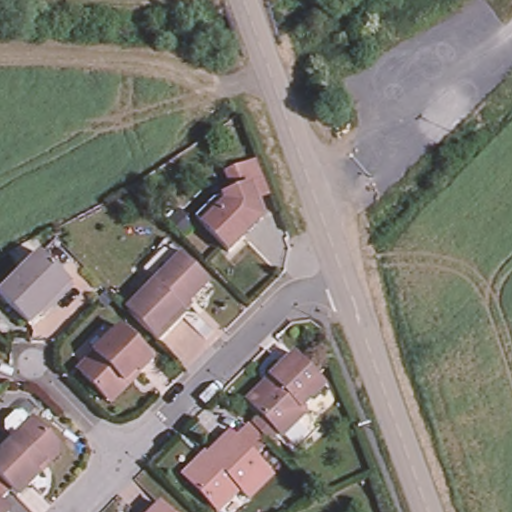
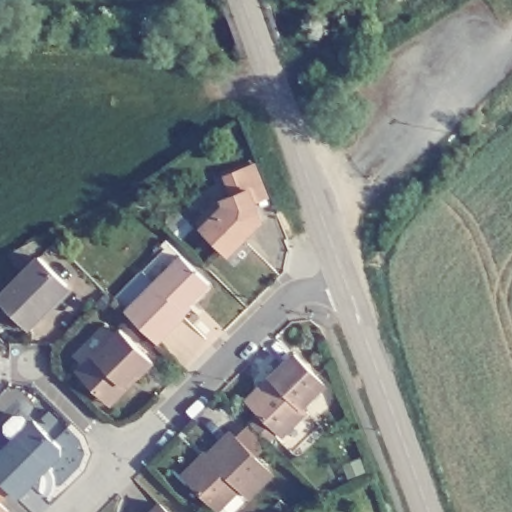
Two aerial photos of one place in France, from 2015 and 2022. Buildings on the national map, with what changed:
unchanged [(246,240),(232,254),(199,219),(217,202),(234,195),(232,174),(250,172),(265,219),(266,220),(246,240)]
unchanged [(194,222),(184,234),(170,220),(181,210),(194,222)]
unchanged [(190,320),(160,350),(127,317),(155,289),(145,277),(173,250),(184,260),(212,291),(216,295),(190,320)]
unchanged [(36,321),(26,331),(0,305),(0,298),(5,293),(38,260),(65,290),(69,292),(38,323),(36,321)]
unchanged [(103,404),(79,378),(79,370),(117,332),(149,365),(136,378),(107,407),(103,404)]
unchanged [(297,410),(302,413),(277,437),(247,405),(242,401),(265,379),(289,355),(321,386),(297,410)]
unchanged [(0,480),(0,456),(35,421),(62,447),(62,456),(55,464),(40,480),(20,499),(0,480)]
unchanged [(235,495),(217,512),(211,512),(184,485),(179,480),(200,460),(202,462),(227,438),(267,480),(245,503),(235,495)]
unchanged [(154,512),(160,506),(167,512),(154,512)]
unchanged [(0,512),(0,509),(3,512),(0,512)]

